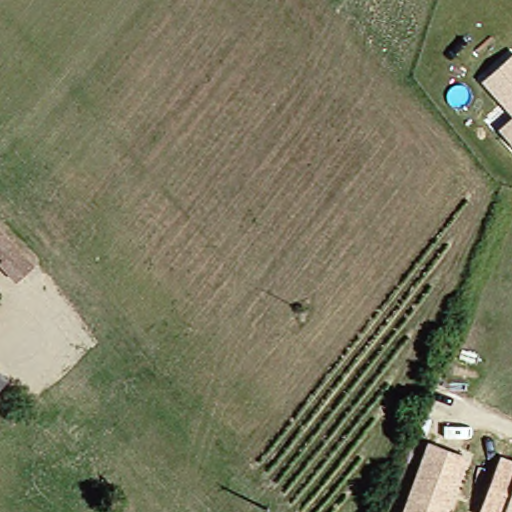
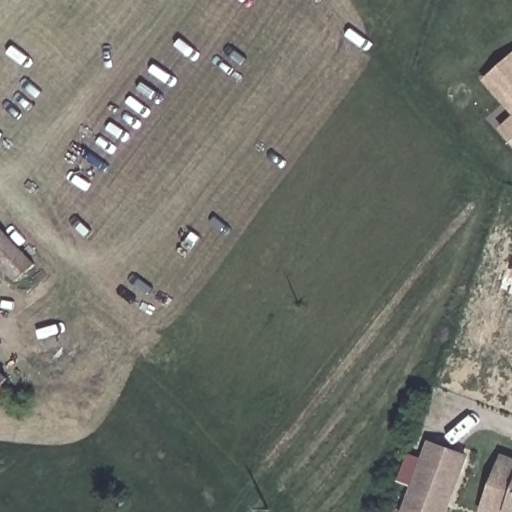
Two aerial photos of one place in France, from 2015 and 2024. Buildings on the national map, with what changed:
unchanged [(498,127),(510,114),(482,78),(512,54),(512,141),(498,127)]
unchanged [(9,279),(0,270),(0,236),(28,262),(9,279)]
unchanged [(449,512),(404,512),(427,437),(467,455),(449,512)]
unchanged [(480,512),(502,452),(512,456),(512,512),(480,512)]

